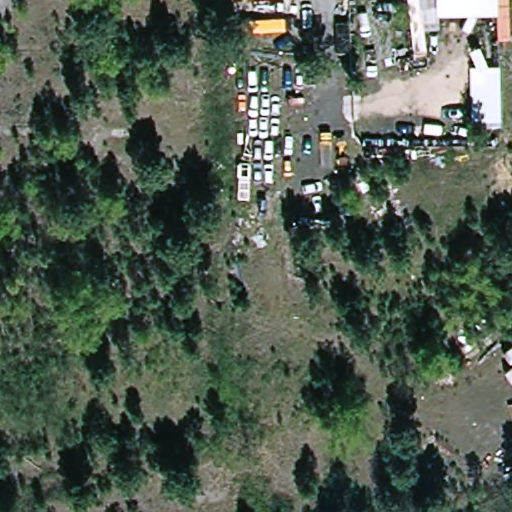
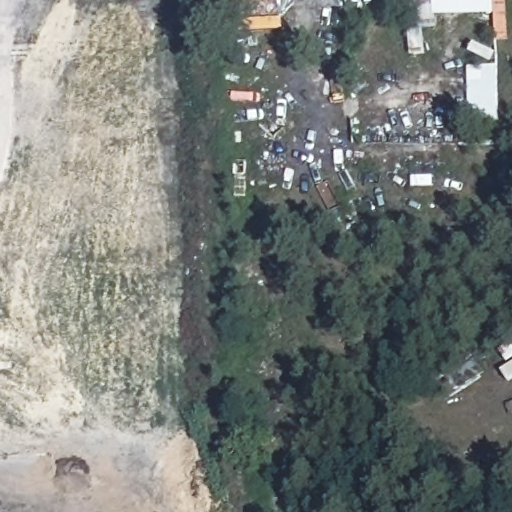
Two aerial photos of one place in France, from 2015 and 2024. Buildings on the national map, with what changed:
unchanged [(497,15),(439,17),(439,30),(422,31),(419,0),(495,0),(497,15)]
unchanged [(499,67),(499,126),(470,128),(470,68),(499,67)]

